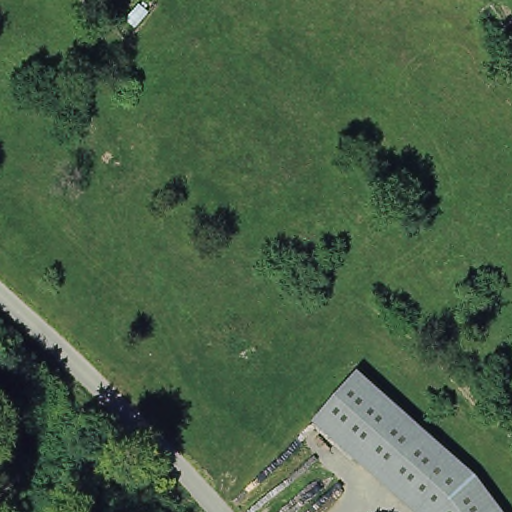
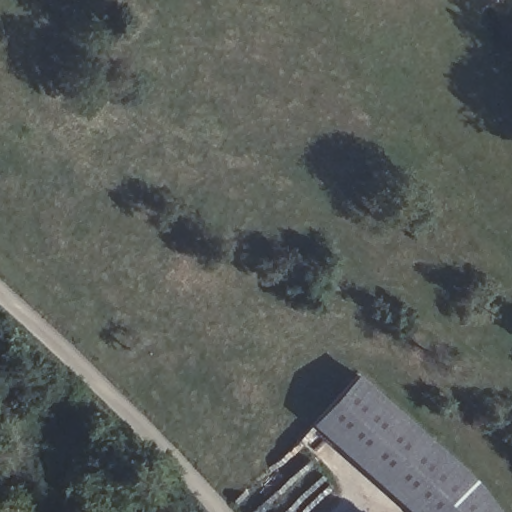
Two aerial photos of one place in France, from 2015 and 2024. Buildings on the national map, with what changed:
unchanged [(325,417),(365,370),(483,474),(511,512),(430,512),(325,417)]

